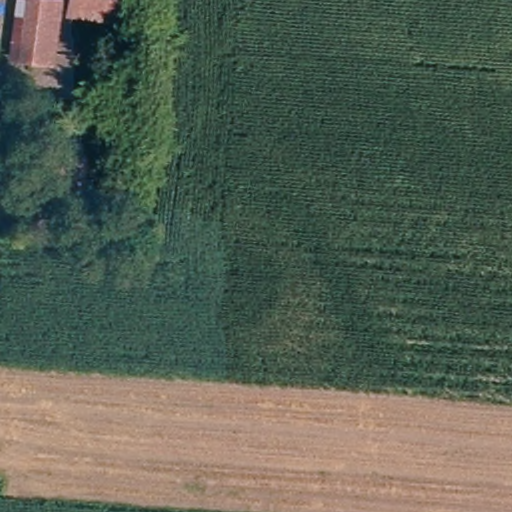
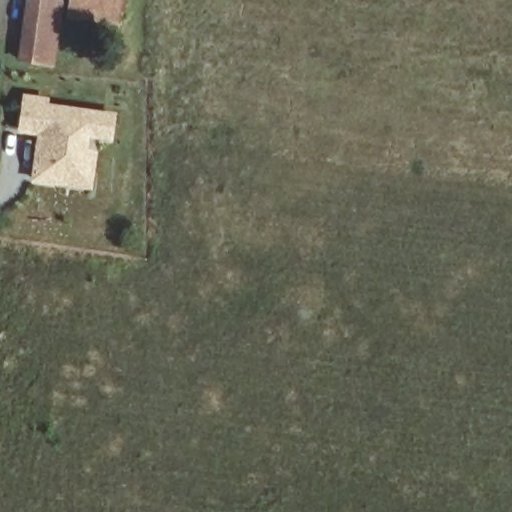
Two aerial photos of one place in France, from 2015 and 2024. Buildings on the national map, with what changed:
unchanged [(22,56),(34,0),(58,0),(60,0),(51,61),(22,56)]
new [(69,16),(71,0),(126,0),(123,23),(69,16)]
new [(49,97),(49,103),(117,113),(114,142),(90,139),(89,150),(96,150),(92,190),(31,181),(38,136),(16,133),(23,93),(49,97)]

